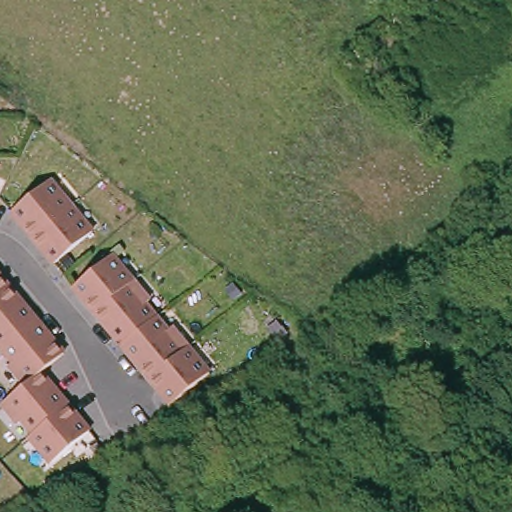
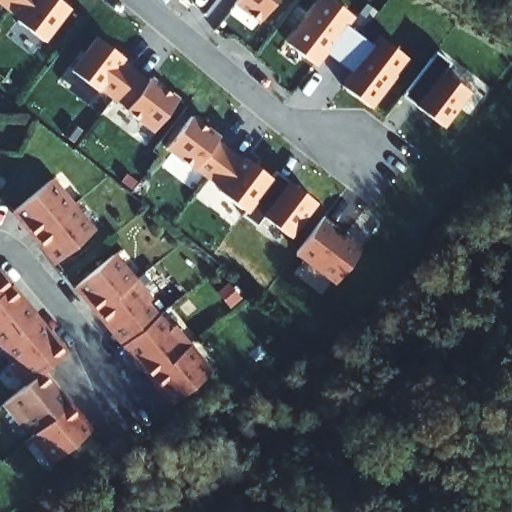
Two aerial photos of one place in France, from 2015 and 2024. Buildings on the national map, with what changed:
new [(69,9),(44,43),(0,10),(0,0),(58,0),(69,9)]
new [(257,26),(232,8),(237,0),(275,0),(257,26)]
new [(354,19),(347,26),(370,45),(377,37),(408,61),(371,110),(339,88),(350,72),(325,55),(317,68),(285,46),(318,0),(328,0),(354,19)]
new [(177,98),(152,134),(70,72),(94,39),(177,98)]
new [(449,64),(441,72),(470,92),(444,129),(414,107),(401,99),(435,54),(449,64)]
new [(220,137),(215,142),(240,160),(242,157),(270,179),(274,173),(287,182),(317,204),(290,239),(262,219),(255,227),(242,218),(247,213),(164,152),(190,116),(220,137)]
unchanged [(51,182),(72,207),(35,237),(13,212),(51,182)]
unchanged [(94,232),(57,263),(35,237),(72,207),(94,232)]
new [(365,253),(337,288),(296,261),(322,223),(365,253)]
unchanged [(120,252),(141,277),(104,307),(82,283),(120,252)]
unchanged [(15,284),(0,297),(0,267),(15,284)]
unchanged [(165,307),(162,310),(129,337),(104,307),(141,277),(165,307)]
unchanged [(15,284),(42,316),(10,343),(0,332),(0,297),(15,284)]
unchanged [(162,310),(174,323),(177,321),(191,338),(155,368),(129,337),(162,310)]
unchanged [(42,316),(69,348),(47,367),(33,378),(17,361),(22,357),(10,343),(42,316)]
unchanged [(191,338),(211,362),(175,394),(155,368),(191,338)]
unchanged [(73,398),(42,425),(30,411),(27,413),(12,396),(33,378),(47,367),(73,398)]
unchanged [(94,422),(59,452),(39,427),(42,425),(73,398),(94,422)]

